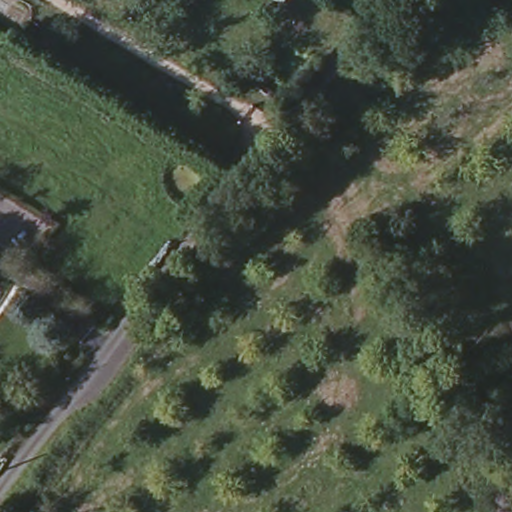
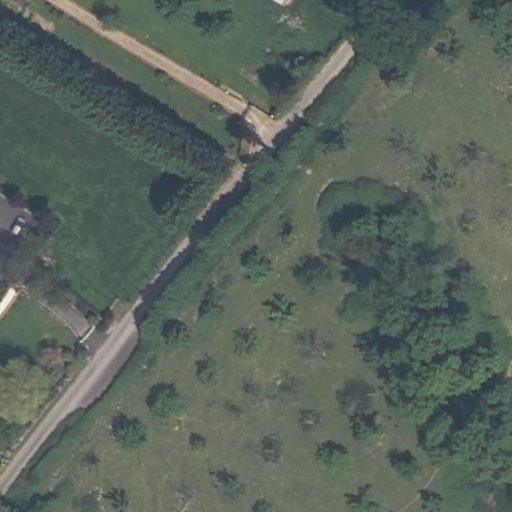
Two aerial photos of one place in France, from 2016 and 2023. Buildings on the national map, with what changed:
unchanged [(281,0),(288,0),(287,3),(281,0)]

